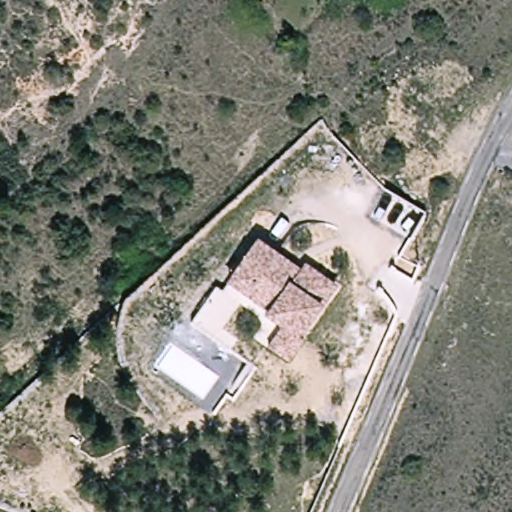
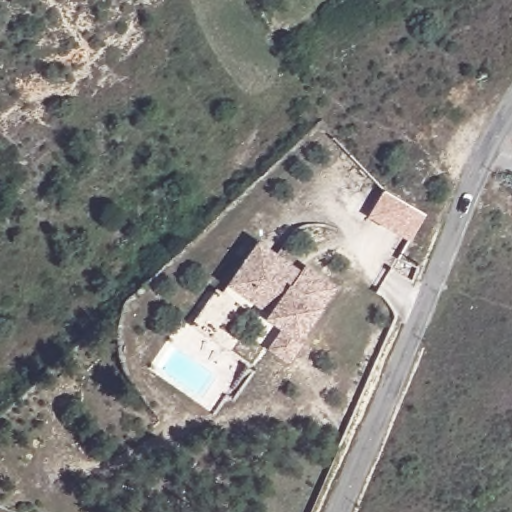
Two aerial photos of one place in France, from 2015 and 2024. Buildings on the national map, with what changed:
new [(384,191),(426,217),(411,242),(368,217),(384,191)]
unchanged [(266,350),(281,330),(268,320),(271,315),(245,296),(230,286),(241,271),(260,245),(294,269),(301,274),(306,270),(336,292),(297,343),(301,346),(287,366),(266,350)]

